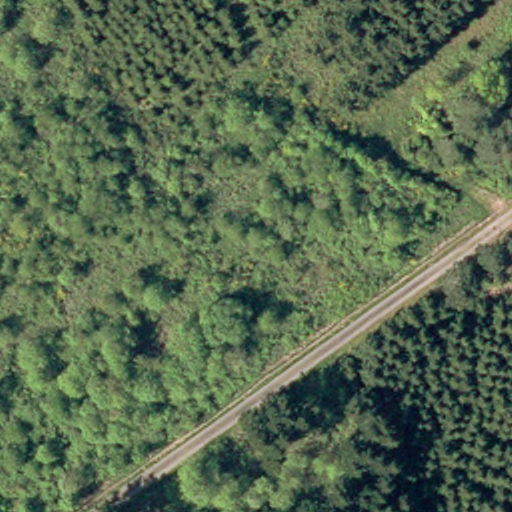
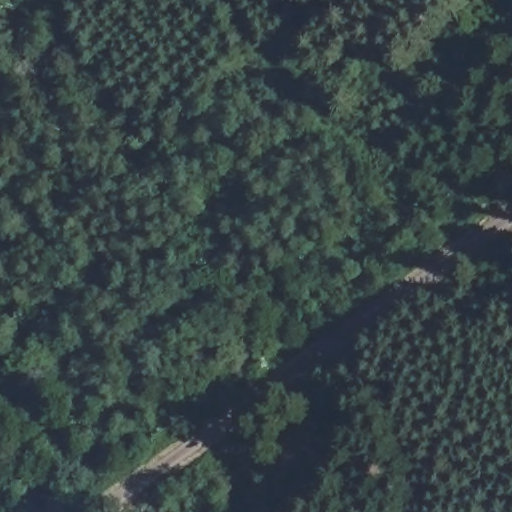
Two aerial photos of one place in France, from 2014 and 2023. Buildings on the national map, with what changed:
unchanged [(172,493),(161,503),(164,507),(160,512),(156,512),(152,508),(147,512),(140,512),(134,505),(161,482),(172,493)]

